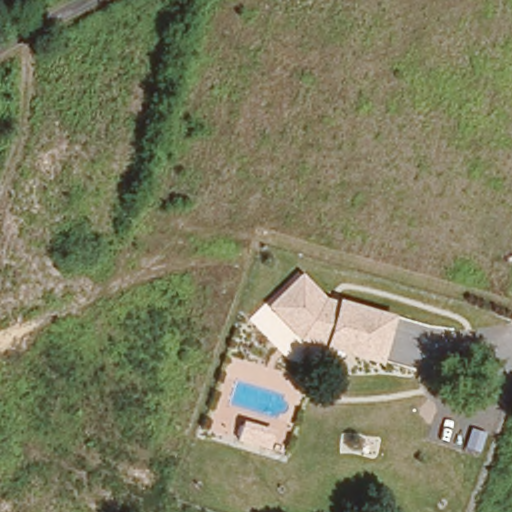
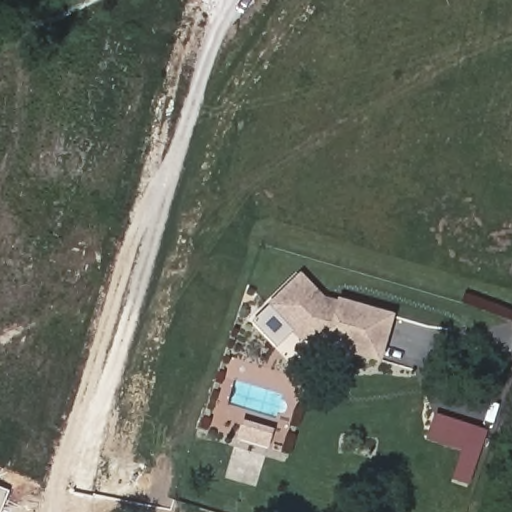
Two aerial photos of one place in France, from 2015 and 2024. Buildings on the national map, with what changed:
unchanged [(383,364),(324,349),(300,342),(265,309),(302,275),(323,298),(334,302),(335,299),(395,315),(383,364)]
new [(462,450),(426,439),(435,413),(488,431),(468,487),(451,481),(462,450)]
new [(9,491),(0,512),(0,487),(9,491)]

